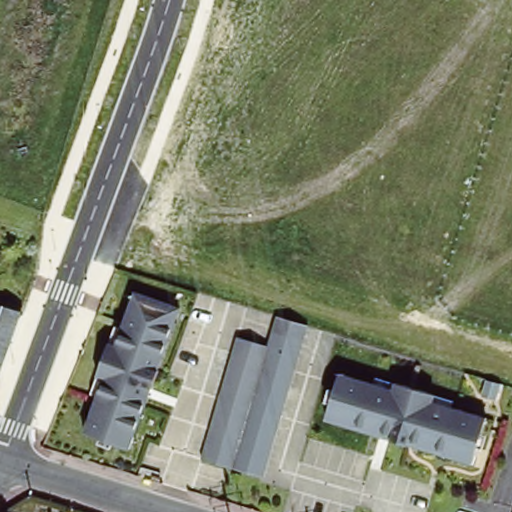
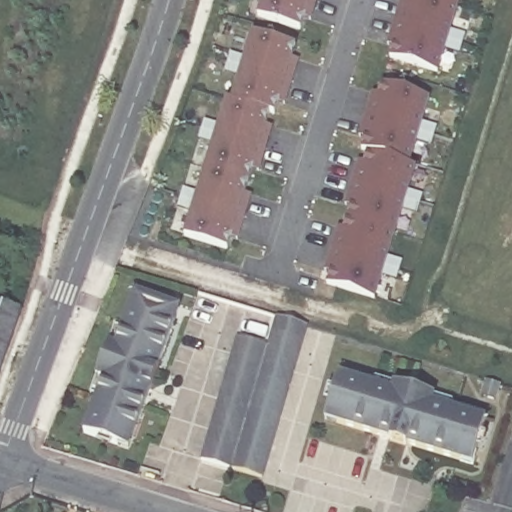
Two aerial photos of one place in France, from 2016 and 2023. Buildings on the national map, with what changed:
new [(311,10),(305,8),(298,27),(256,14),(261,0),(314,0),(311,10)]
new [(435,70),(388,55),(394,37),(388,35),(398,6),(403,7),(406,0),(458,0),(435,70)]
new [(293,43),(287,62),(294,64),(285,95),(278,93),(272,111),(267,110),(261,129),(267,131),(258,161),(251,159),(240,197),(246,199),(236,229),(230,227),(224,247),(181,233),(225,97),(230,98),(251,30),(293,43)]
new [(407,162),(413,164),(371,296),(324,282),(330,263),(324,261),(333,232),(339,234),(351,197),(345,195),(355,165),(360,167),(366,149),(360,147),(365,129),(360,127),(369,97),(375,99),(380,81),(427,96),(407,162)]
unchanged [(101,383),(90,380),(110,328),(119,332),(133,294),(176,310),(125,456),(82,440),(101,383)]
unchanged [(0,364),(0,304),(18,310),(0,364)]
unchanged [(272,316),(311,328),(264,479),(228,469),(272,316)]
unchanged [(228,469),(199,459),(236,335),(264,343),(228,469)]
unchanged [(336,373),(388,391),(390,383),(429,395),(426,403),(483,422),(470,466),(322,420),(336,373)]

